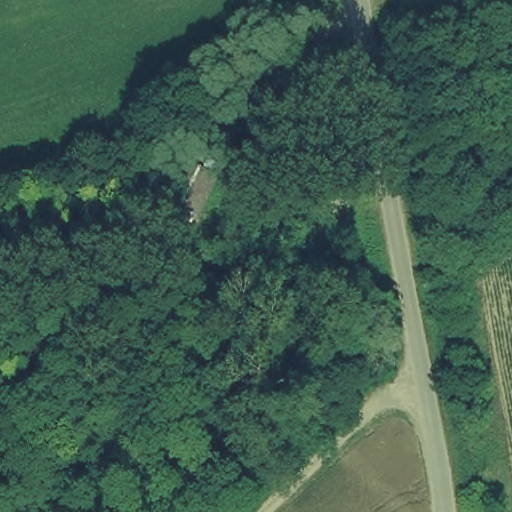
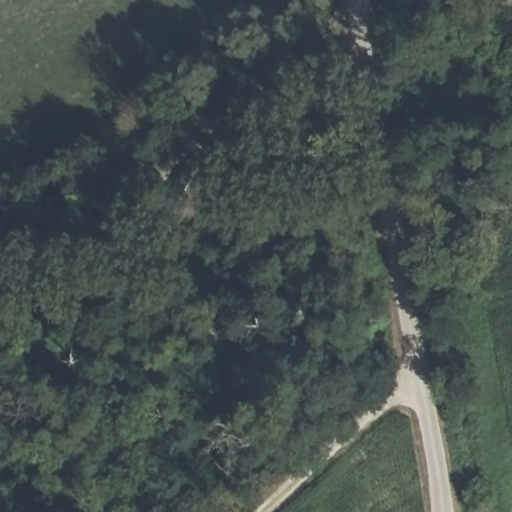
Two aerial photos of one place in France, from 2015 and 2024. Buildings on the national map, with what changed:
unchanged [(173,177),(208,188),(193,219),(161,207),(173,177)]

